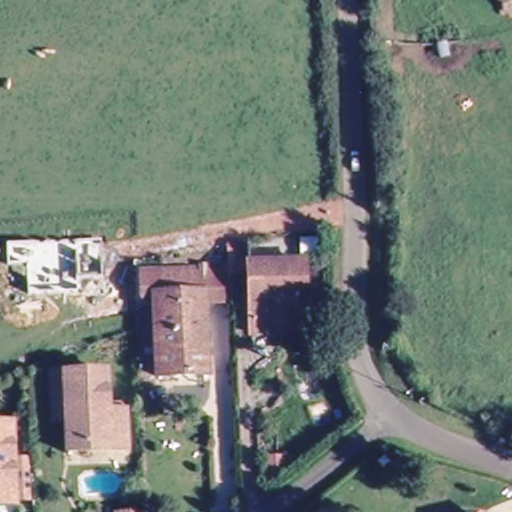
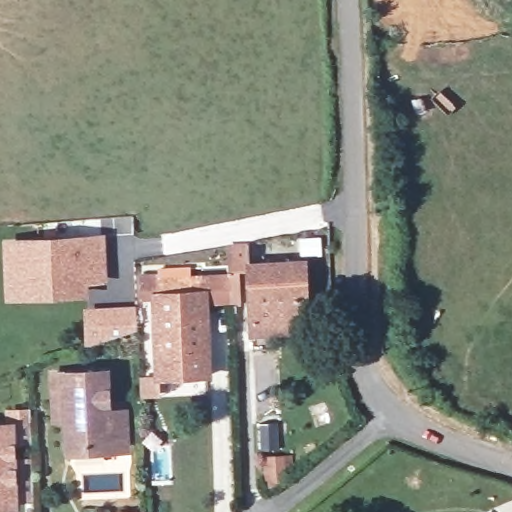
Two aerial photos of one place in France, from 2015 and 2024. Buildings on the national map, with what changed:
new [(106,234),(107,284),(90,285),(90,297),(3,300),(2,238),(106,234)]
unchanged [(233,276),(232,264),(232,250),(250,247),(251,262),(252,275),(233,276)]
unchanged [(308,267),(309,305),(300,305),(301,329),(255,330),(252,268),(308,267)]
unchanged [(156,292),(162,291),(159,275),(199,272),(208,295),(211,380),(159,383),(156,292)]
new [(137,305),(138,331),(127,331),(127,338),(85,340),(84,307),(137,305)]
unchanged [(64,405),(52,406),(51,373),(104,370),(106,411),(123,410),(124,444),(66,446),(64,405)]
unchanged [(35,493),(36,504),(16,504),(16,507),(0,508),(0,431),(14,430),(15,467),(34,466),(35,493)]
unchanged [(140,510),(140,512),(114,512),(114,511),(140,510)]

